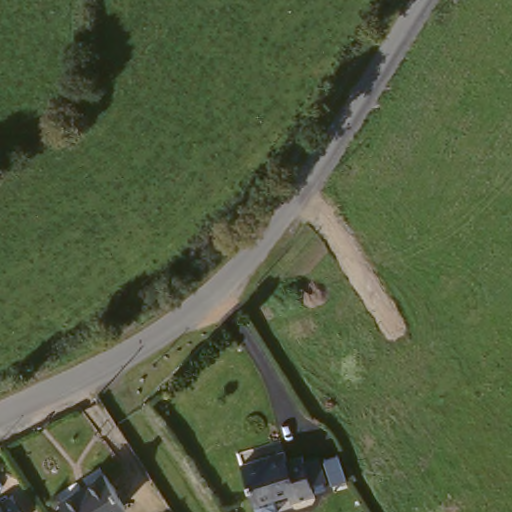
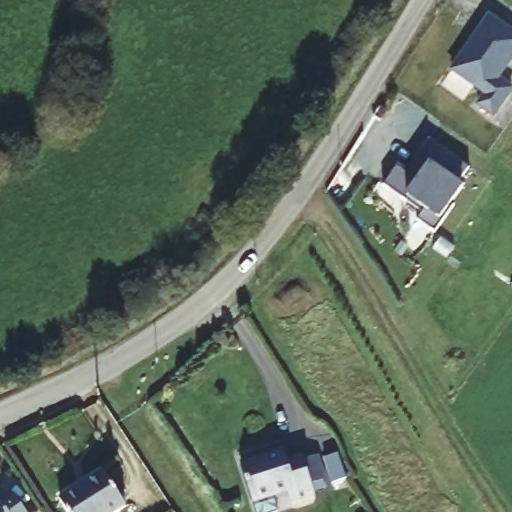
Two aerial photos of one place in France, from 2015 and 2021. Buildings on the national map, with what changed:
new [(474,39),(491,15),(512,31),(512,53),(497,75),(511,85),(493,112),(478,101),(485,90),(451,67),(472,37),(474,39)]
new [(469,165),(457,180),(464,185),(454,199),(457,200),(434,232),(415,220),(422,211),(385,184),(397,165),(407,170),(431,138),(469,165)]
unchanged [(274,491),(279,506),(260,512),(258,512),(243,460),(285,447),(288,455),(303,451),(304,455),(318,451),(324,475),(326,483),(314,487),(314,490),(298,495),(290,497),(288,487),(274,491)]
unchanged [(338,451),(344,476),(330,480),(323,455),(338,451)]
unchanged [(126,506),(117,512),(68,512),(61,500),(105,473),(126,506)]
unchanged [(3,503),(15,495),(26,512),(0,512),(0,503),(2,502),(3,503)]

